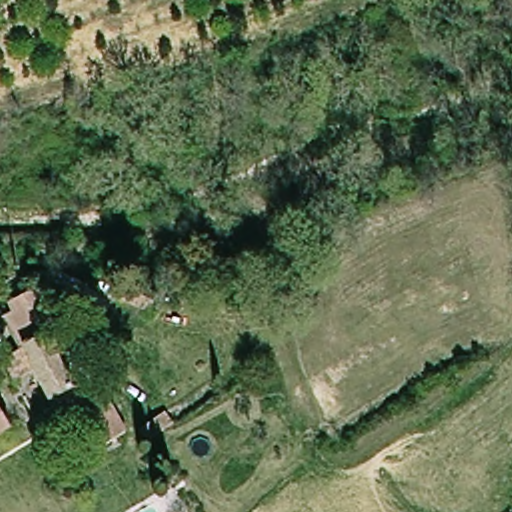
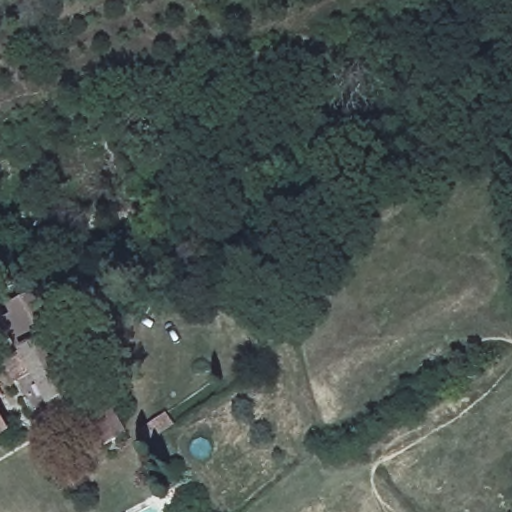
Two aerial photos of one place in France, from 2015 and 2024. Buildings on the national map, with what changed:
unchanged [(66,386),(43,397),(31,370),(9,380),(0,360),(0,357),(16,350),(6,329),(0,315),(10,311),(7,302),(46,281),(68,323),(63,325),(41,336),(66,386)]
unchanged [(43,397),(66,386),(82,418),(59,432),(54,423),(43,397)]
unchanged [(97,447),(95,441),(82,418),(104,404),(115,429),(119,436),(97,447)]
unchanged [(4,420),(8,425),(0,431),(0,413),(4,420)]

